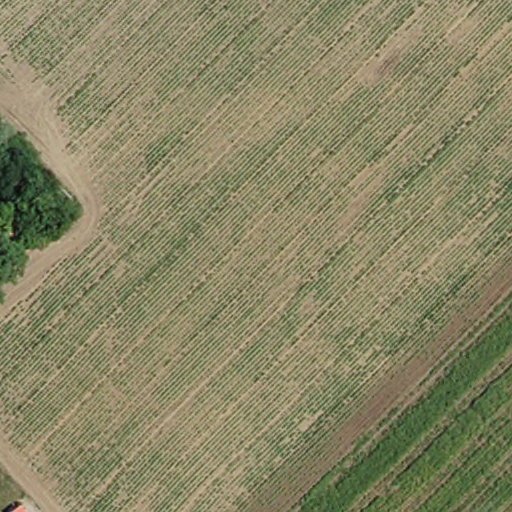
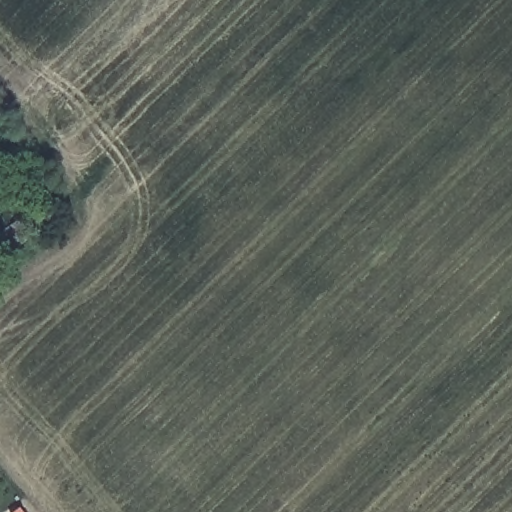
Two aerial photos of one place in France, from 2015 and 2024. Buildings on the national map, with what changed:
unchanged [(35,512),(28,512),(32,508),(35,512)]

